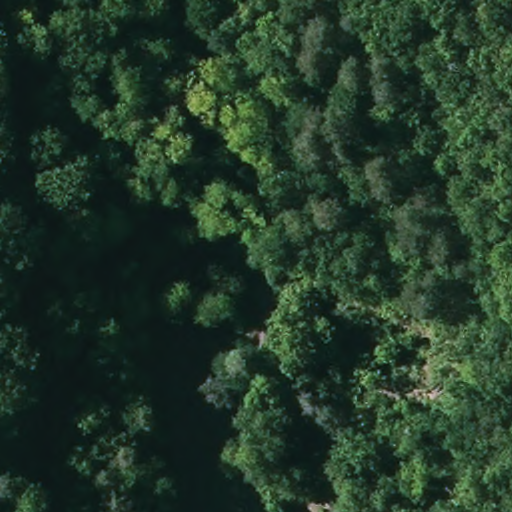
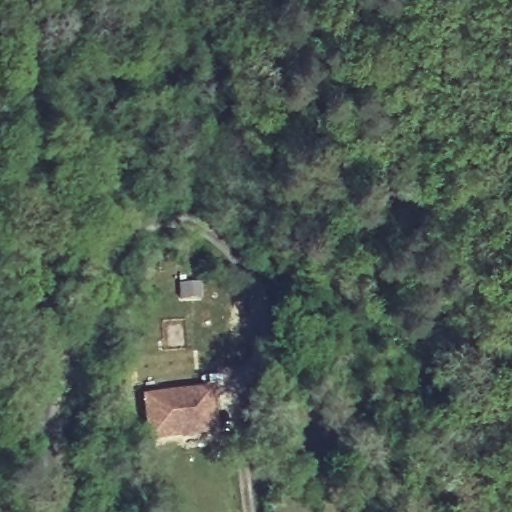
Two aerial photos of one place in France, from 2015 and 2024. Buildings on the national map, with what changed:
unchanged [(425,109),(422,103),(423,98),(426,93),(433,90),(440,92),(442,94),(445,101),(443,108),(441,110),(435,113),(427,111),(425,109)]
new [(143,394),(212,385),(218,432),(148,441),(143,394)]

